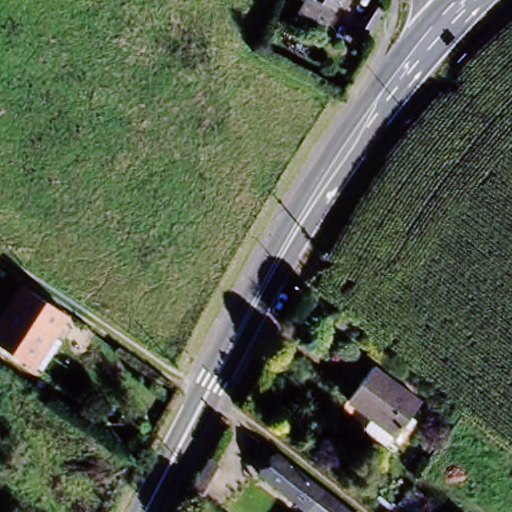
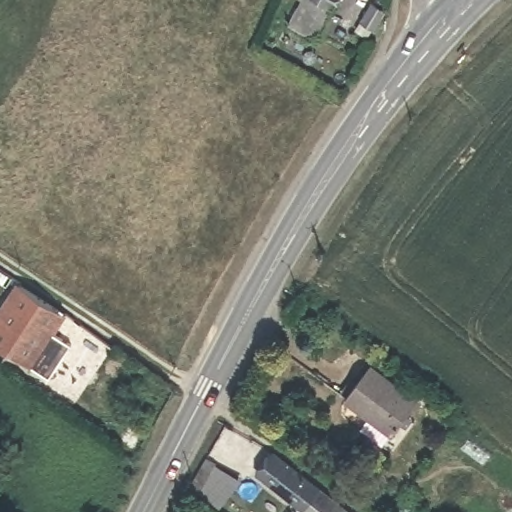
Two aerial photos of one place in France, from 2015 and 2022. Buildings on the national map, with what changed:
unchanged [(278,45),(302,3),(294,0),(336,0),(303,54),(278,45)]
unchanged [(383,11),(374,29),(363,23),(374,5),(383,11)]
unchanged [(0,319),(19,289),(66,315),(39,363),(0,342),(0,319)]
unchanged [(361,374),(372,361),(418,398),(408,410),(393,429),(346,392),(361,374)]
unchanged [(251,471),(267,452),(315,490),(299,510),(251,471)]
unchanged [(315,490),(342,512),(301,512),(299,510),(315,490)]

